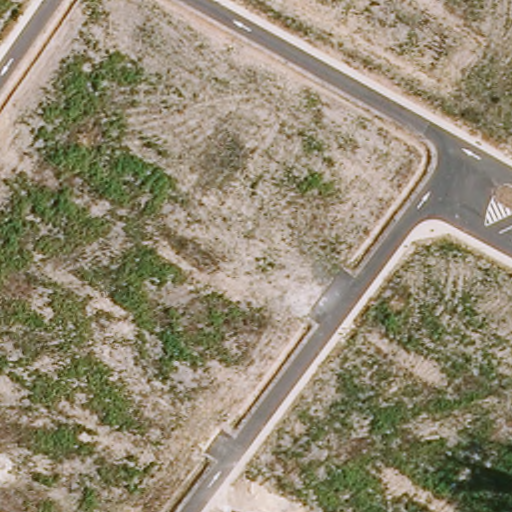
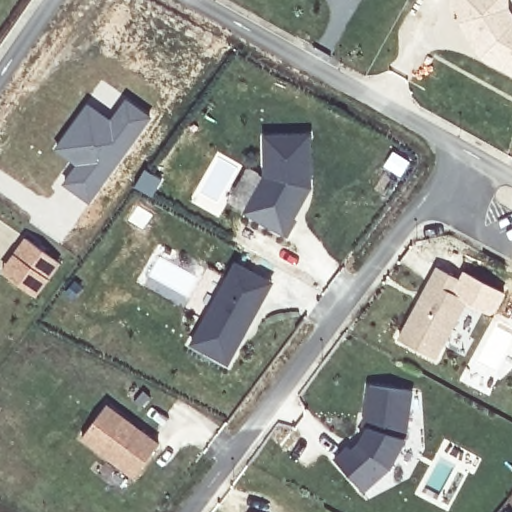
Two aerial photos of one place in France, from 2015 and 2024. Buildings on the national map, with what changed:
new [(508,5),(512,12),(512,78),(482,62),(458,23),(458,12),(453,12),(453,0),(508,0),(508,5)]
new [(87,101),(110,117),(125,97),(150,117),(88,202),(62,183),(74,165),(52,148),(87,101)]
new [(290,219),(292,220),(285,234),(242,213),(262,176),(262,135),(305,134),(307,187),(301,197),(290,219)]
new [(23,239),(56,262),(44,278),(33,295),(0,271),(12,256),(23,239)]
new [(233,262),(270,282),(262,295),(226,363),(190,344),(226,276),(233,262)]
new [(435,267),(458,280),(451,293),(463,300),(432,357),(397,338),(435,267)]
new [(406,435),(387,470),(360,496),(331,463),(346,450),(349,454),(358,446),(368,424),(363,423),(367,386),(411,392),(406,435)]
new [(159,442),(133,477),(82,438),(108,404),(159,442)]

